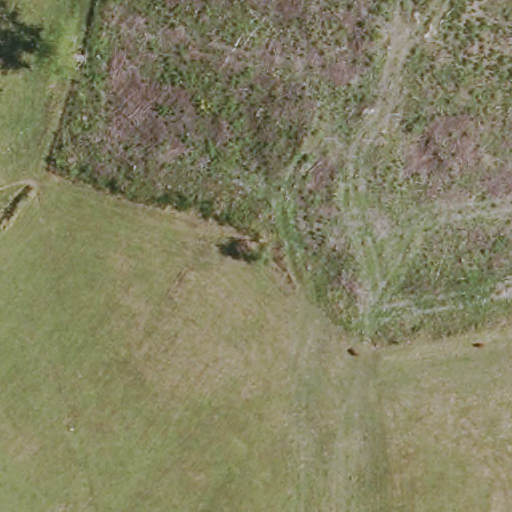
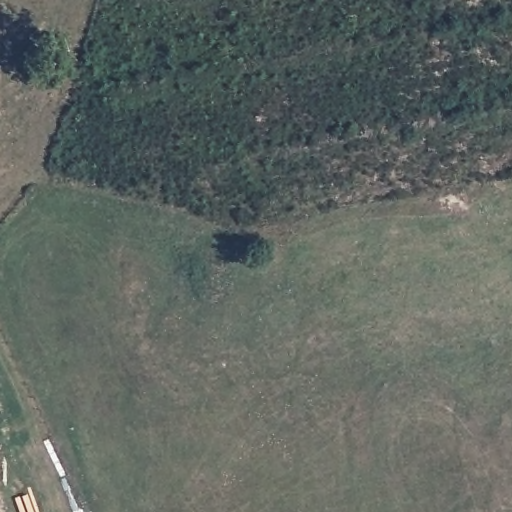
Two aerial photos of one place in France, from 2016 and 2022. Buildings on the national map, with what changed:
[]

